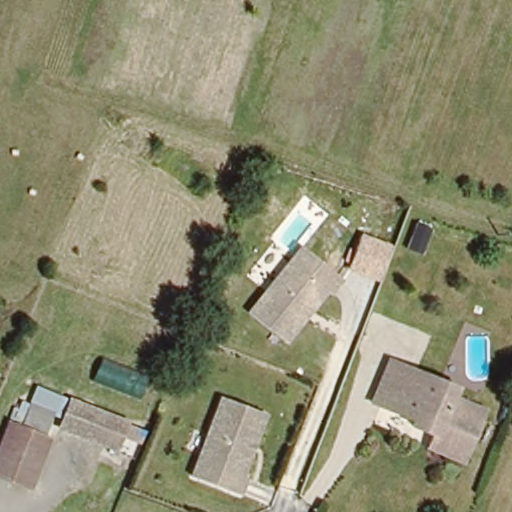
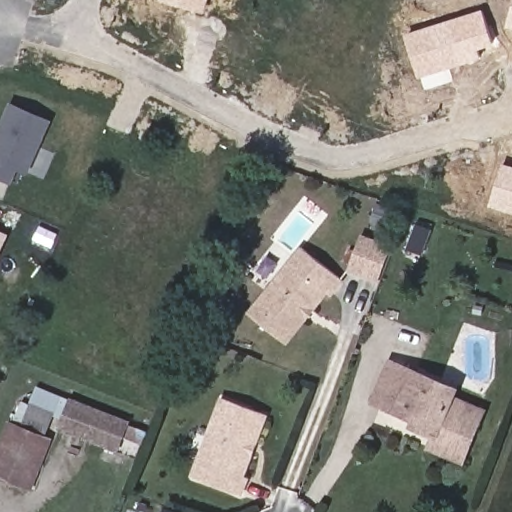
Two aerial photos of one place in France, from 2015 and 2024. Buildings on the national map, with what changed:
new [(205,13),(160,0),(209,0),(205,13)]
new [(512,8),(512,28),(506,26),(512,8)]
new [(494,44),(480,49),(482,58),(418,78),(404,33),(484,9),(494,44)]
new [(50,122),(27,177),(16,171),(11,185),(0,180),(0,123),(8,104),(50,122)]
new [(503,163),(512,166),(512,213),(489,205),(503,163)]
new [(9,236),(0,257),(0,232),(9,236)]
unchanged [(304,246),(344,279),(333,293),(329,291),(288,342),(251,313),(304,246)]
unchanged [(433,452),(439,438),(416,429),(420,421),(389,409),(372,402),(389,361),(406,368),(459,389),(455,399),(487,413),(468,457),(466,464),(433,452)]
unchanged [(119,430),(113,444),(56,421),(67,397),(142,427),(138,438),(119,430)]
unchanged [(224,398),(268,415),(244,477),(248,478),(241,496),(193,478),(224,398)]
unchanged [(40,444),(45,446),(25,494),(0,483),(0,446),(6,429),(18,434),(29,410),(50,420),(40,444)]

